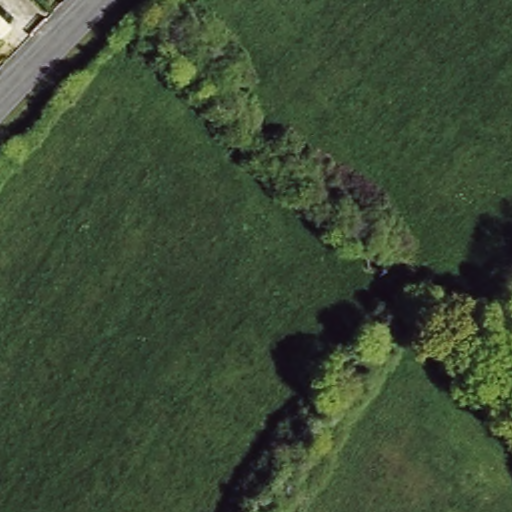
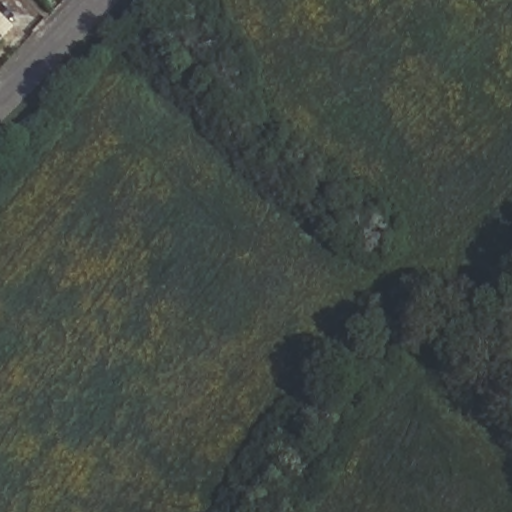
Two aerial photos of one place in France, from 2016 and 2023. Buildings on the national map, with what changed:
unchanged [(1,39),(0,40),(0,38),(1,39)]

